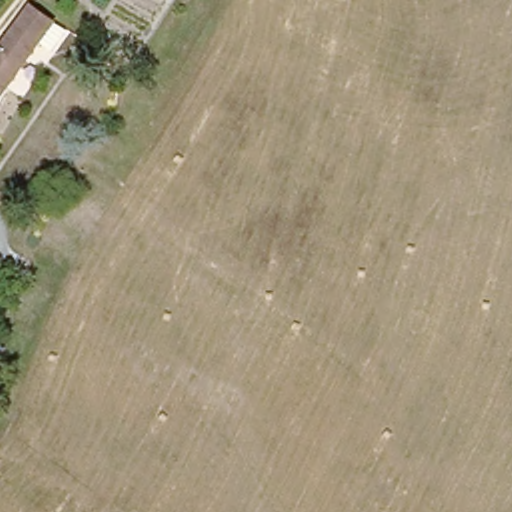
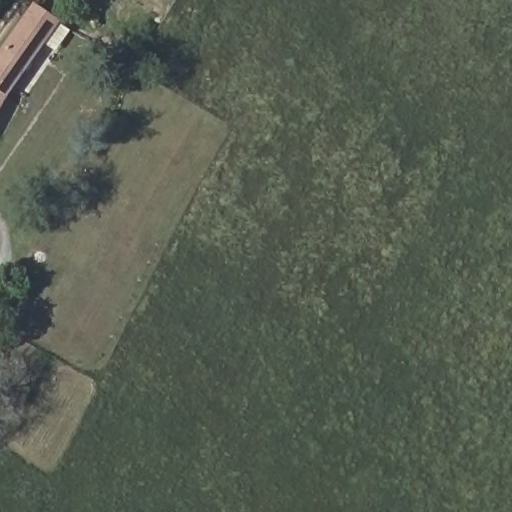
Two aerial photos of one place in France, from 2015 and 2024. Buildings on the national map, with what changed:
unchanged [(52,19),(9,87),(0,81),(0,53),(30,5),(52,19)]
unchanged [(0,99),(0,93),(3,95),(0,99)]

